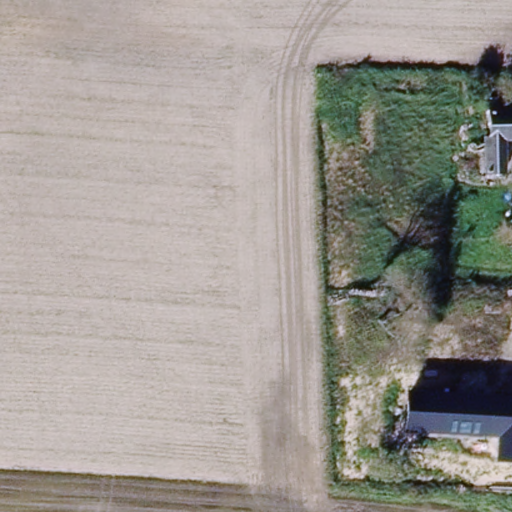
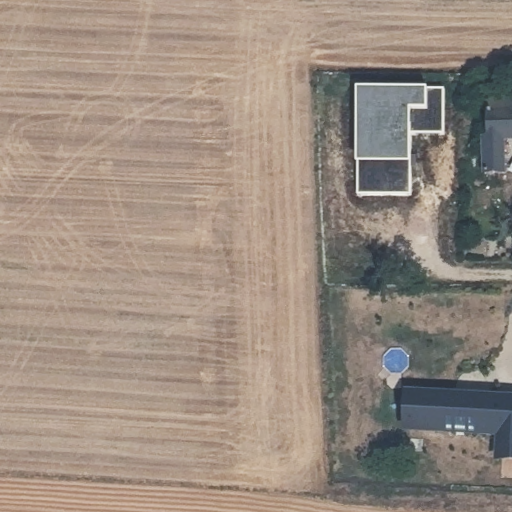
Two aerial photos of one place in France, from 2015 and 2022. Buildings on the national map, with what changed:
new [(389,97),(389,90),(445,90),(445,135),(411,135),(411,196),(361,196),(361,97),(389,97)]
unchanged [(508,172),(490,172),(488,132),(493,131),(492,96),(512,95),(512,138),(508,138),(508,172)]
unchanged [(441,431),(406,428),(407,392),(512,399),(512,435),(482,433),(441,431)]

